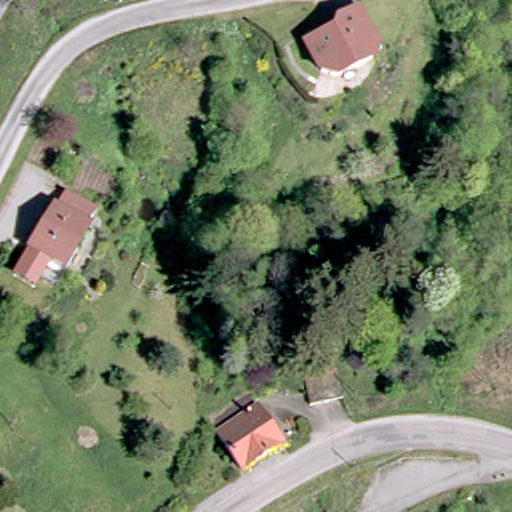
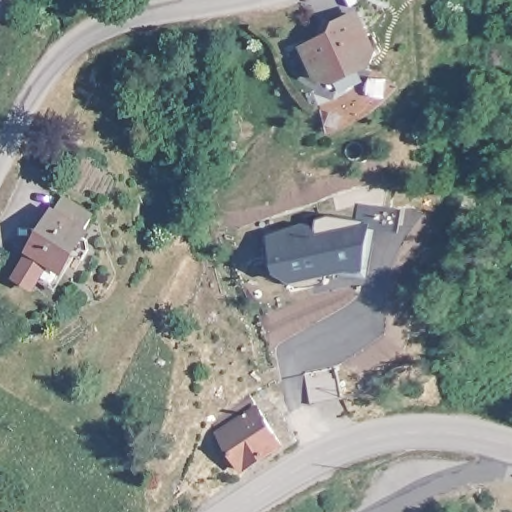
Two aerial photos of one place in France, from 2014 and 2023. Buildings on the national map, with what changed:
unchanged [(46,30),(39,40),(22,29),(31,17),(46,30)]
unchanged [(337,33),(357,22),(378,70),(339,90),(320,81),(307,53),(339,36),(337,33)]
new [(305,224),(317,226),(318,221),(330,215),(360,202),(402,210),(399,230),(372,224),(367,271),(292,283),(276,275),(270,265),(263,234),(305,224)]
unchanged [(67,277),(36,257),(68,205),(101,224),(67,277)]
unchanged [(303,375),(333,370),(344,401),(311,406),(303,375)]
unchanged [(215,425),(256,400),(290,453),(253,476),(230,445),(215,425)]

